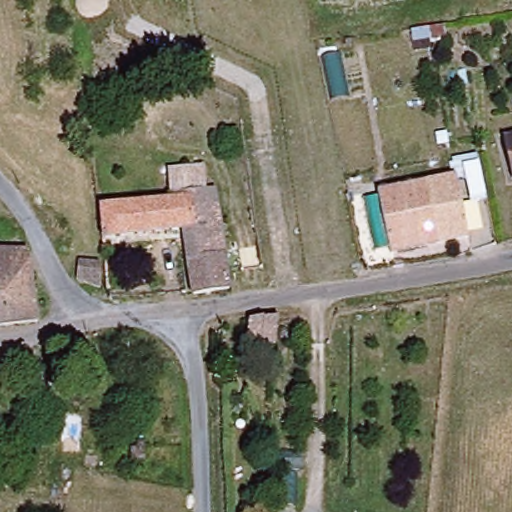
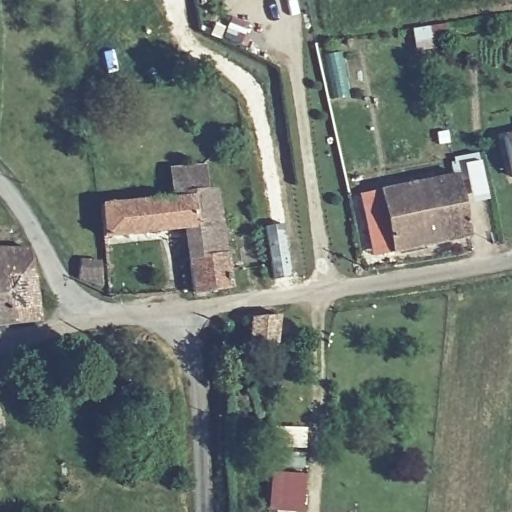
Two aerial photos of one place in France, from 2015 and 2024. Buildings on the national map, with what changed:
unchanged [(512,135),(512,173),(504,136),(512,135)]
unchanged [(167,162),(216,157),(219,183),(169,190),(167,162)]
unchanged [(391,246),(381,187),(458,174),(468,233),(391,246)]
unchanged [(96,207),(170,198),(169,190),(219,183),(229,257),(190,262),(186,232),(101,240),(96,207)]
unchanged [(25,246),(40,316),(0,321),(0,247),(25,246)]
unchanged [(78,280),(79,257),(98,258),(97,280),(78,280)]
unchanged [(229,257),(233,288),(189,295),(186,265),(190,262),(229,257)]
unchanged [(278,341),(250,342),(251,317),(281,313),(278,341)]
new [(289,512),(278,511),(267,510),(270,473),(280,474),(302,475),(300,512),(289,512)]

